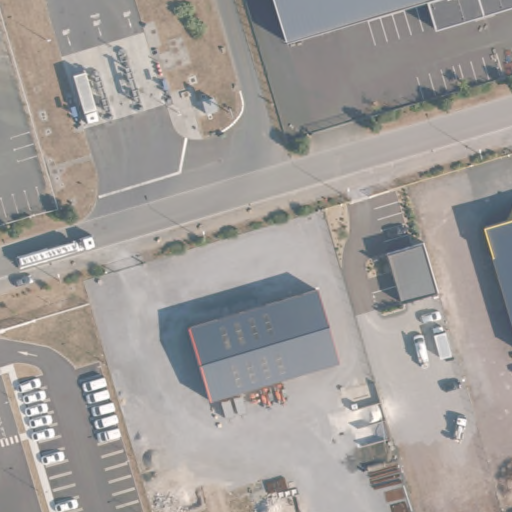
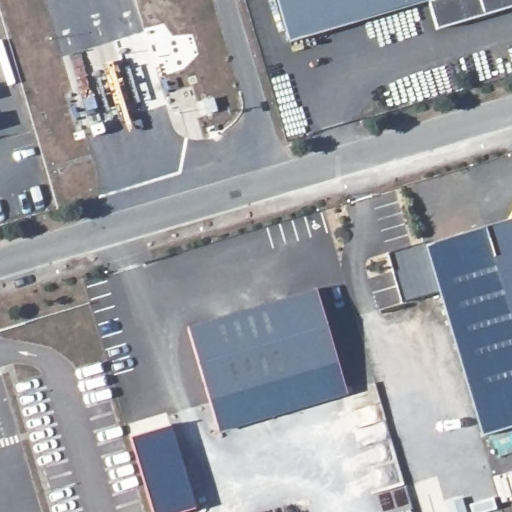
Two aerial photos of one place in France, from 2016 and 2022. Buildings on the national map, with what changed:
unchanged [(512,0),(512,7),(436,30),(427,1),(287,42),(275,0),(512,0)]
unchanged [(202,101),(213,98),(217,111),(206,114),(202,101)]
unchanged [(484,226),(508,219),(512,211),(512,321),(484,226)]
new [(512,321),(512,426),(481,435),(437,292),(401,301),(387,254),(423,244),(484,226),(512,321)]
unchanged [(186,327),(316,289),(337,361),(207,399),(186,327)]
unchanged [(337,361),(347,395),(220,432),(207,399),(337,361)]
new [(180,512),(152,512),(129,435),(169,423),(195,507),(180,512)]

